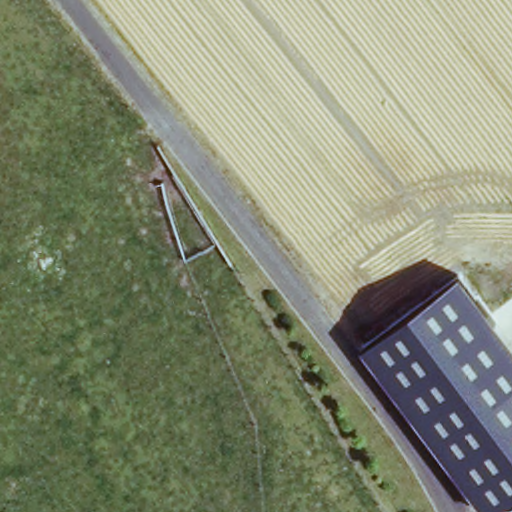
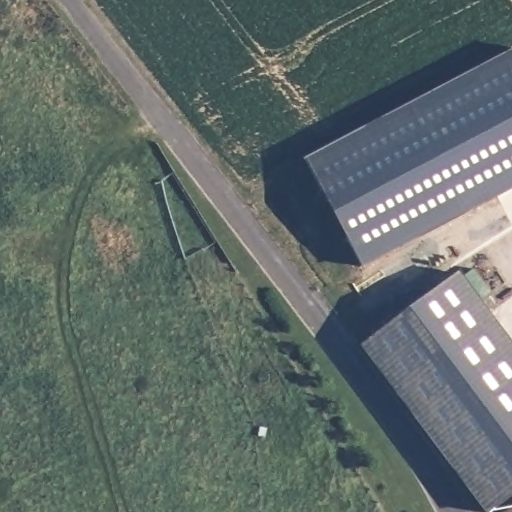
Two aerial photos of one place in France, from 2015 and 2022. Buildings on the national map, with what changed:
new [(512,46),(512,184),(361,263),(304,155),(512,46)]
unchanged [(512,342),(512,499),(495,512),(487,512),(361,345),(461,272),(512,342)]

